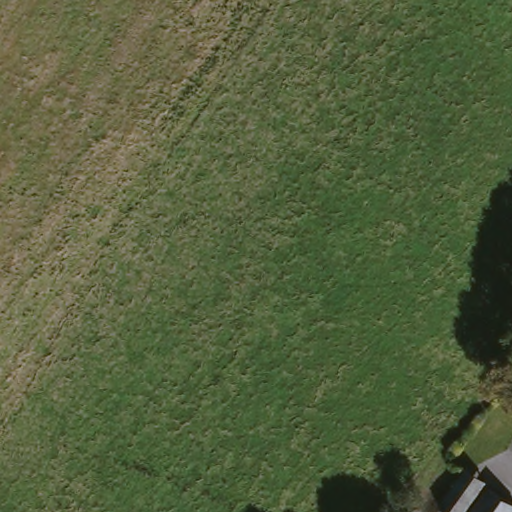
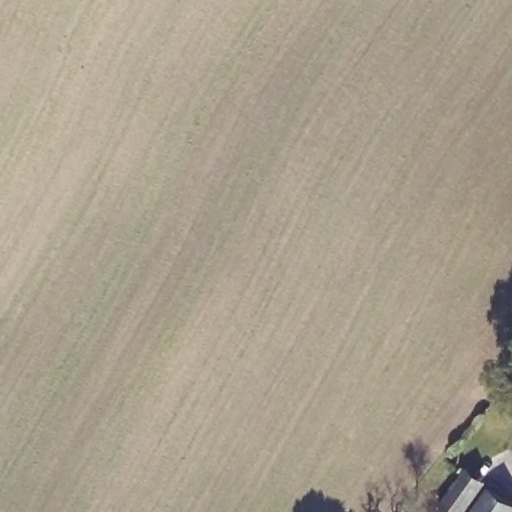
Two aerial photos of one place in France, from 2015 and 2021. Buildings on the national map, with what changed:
unchanged [(450,512),(437,503),(461,467),(484,479),(464,512),(450,512)]
unchanged [(512,507),(512,511),(512,512),(469,512),(484,490),(512,507)]

